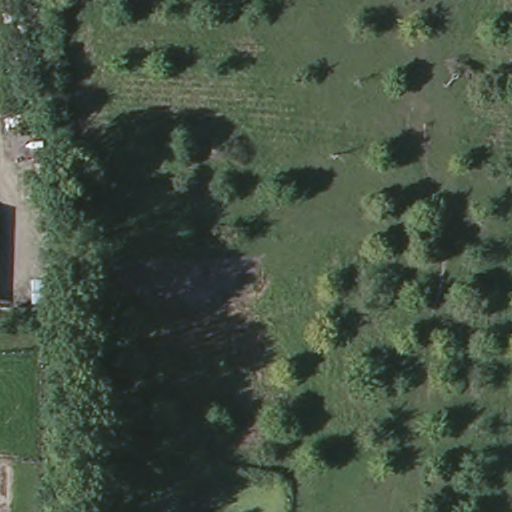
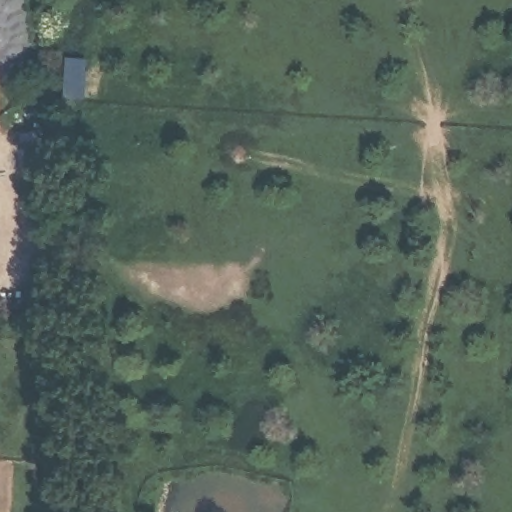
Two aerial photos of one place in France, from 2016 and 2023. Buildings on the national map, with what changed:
new [(87,60),(84,104),(59,102),(62,59),(87,60)]

